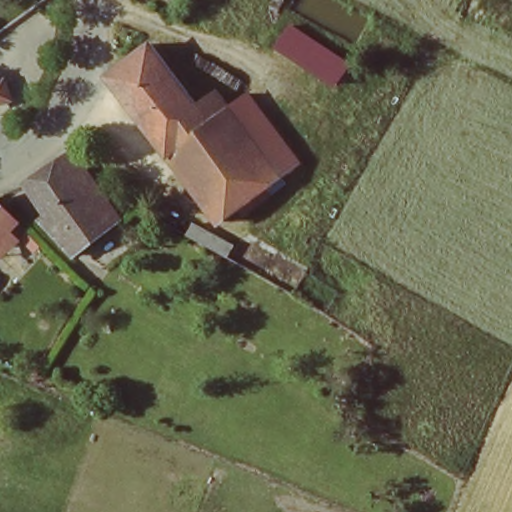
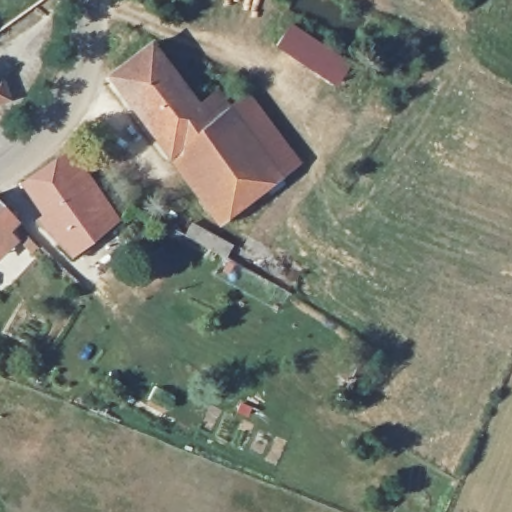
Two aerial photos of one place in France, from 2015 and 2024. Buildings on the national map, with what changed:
unchanged [(278,51),(291,29),(347,60),(333,83),(278,51)]
unchanged [(267,179),(272,185),(247,205),(241,198),(221,215),(175,158),(112,81),(153,47),(200,104),(220,88),(232,104),(266,146),(282,166),(267,179)]
unchanged [(232,104),(249,91),(298,153),(292,158),(282,166),(266,146),(232,104)]
unchanged [(1,95),(0,95),(0,94),(1,95)]
unchanged [(114,226),(73,257),(41,223),(45,219),(20,188),(63,158),(65,156),(97,201),(114,226)]
unchanged [(0,244),(0,202),(12,213),(2,225),(11,232),(0,244)]
unchanged [(198,223),(228,240),(222,251),(192,234),(198,223)]

